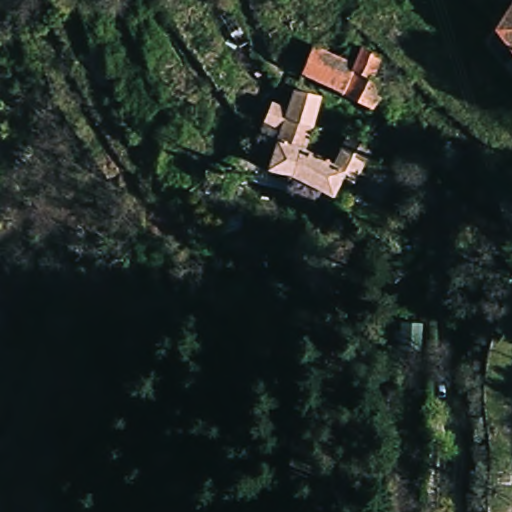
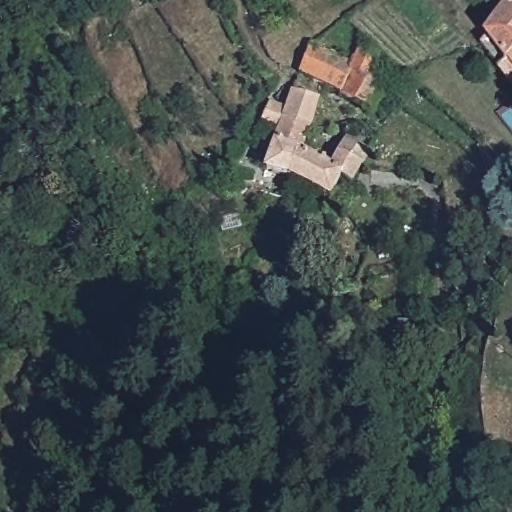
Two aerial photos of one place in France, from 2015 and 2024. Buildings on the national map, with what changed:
unchanged [(483,39),(487,34),(510,6),(512,8),(512,60),(506,65),(483,39)]
unchanged [(375,107),(300,78),(308,51),(351,69),(361,49),(381,57),(372,76),(388,84),(375,107)]
unchanged [(512,60),(512,72),(506,65),(512,60)]
unchanged [(343,175),(333,186),(296,173),(260,157),(261,148),(272,151),(276,137),(281,123),(266,119),(269,105),(286,109),(291,92),(323,104),(313,131),(306,147),(336,157),(345,144),(363,160),(357,167),(350,178),(343,175)]

